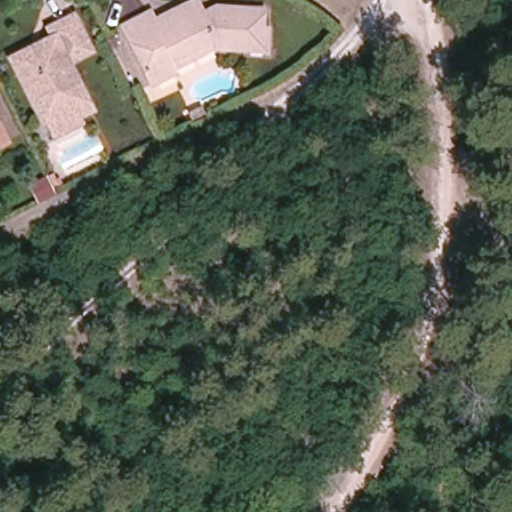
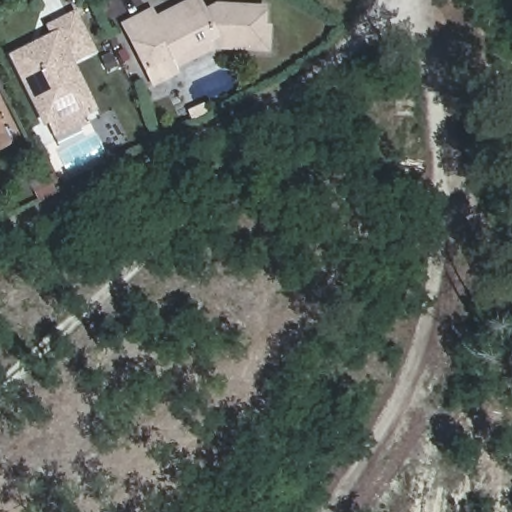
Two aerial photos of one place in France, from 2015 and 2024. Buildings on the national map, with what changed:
unchanged [(175,67),(153,79),(145,62),(124,20),(150,6),(154,15),(177,3),(183,0),(199,0),(203,7),(216,1),(262,4),(262,22),(267,22),(266,45),(233,43),(214,42),(173,62),(175,67)]
unchanged [(90,49),(67,60),(91,108),(77,115),(80,122),(56,134),(49,118),(45,121),(12,57),(55,36),(50,27),(73,15),(90,49)]
unchanged [(206,113),(192,119),(188,111),(202,105),(206,113)]
unchanged [(0,149),(0,128),(9,145),(0,149)]

